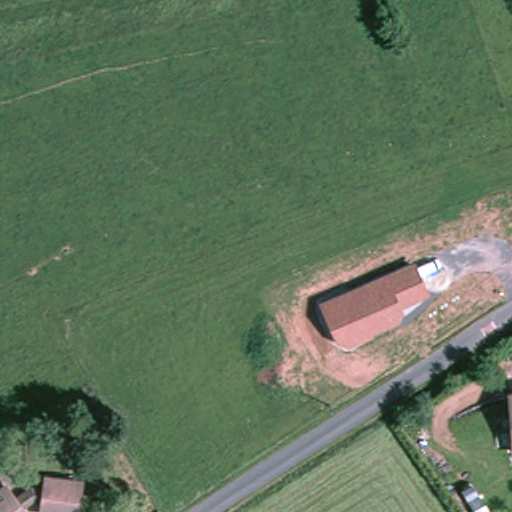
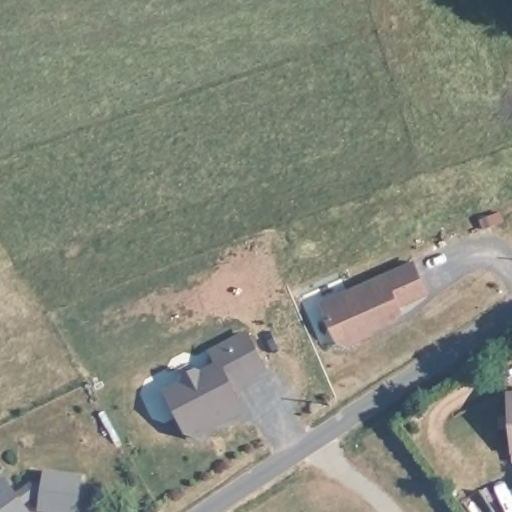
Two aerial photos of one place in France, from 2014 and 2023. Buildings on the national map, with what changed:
unchanged [(414,259),(429,293),(401,306),(404,313),(399,321),(350,345),(336,341),(320,302),(414,259)]
new [(248,331),(269,373),(236,390),(247,413),(207,433),(204,441),(186,435),(163,388),(215,364),(209,351),(248,331)]
unchanged [(82,512),(73,512),(50,509),(54,477),(86,481),(82,512)]
unchanged [(23,512),(0,512),(0,501),(10,494),(23,512)]

